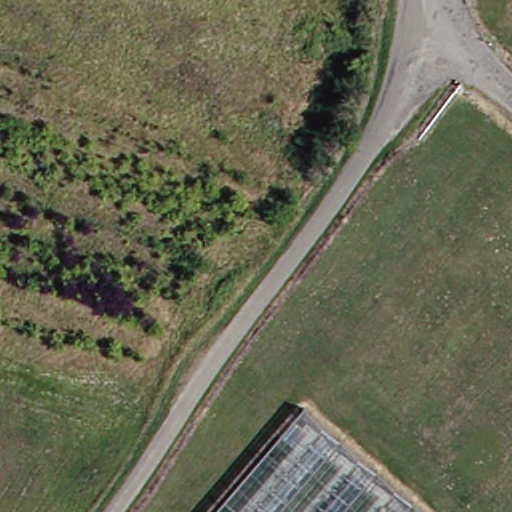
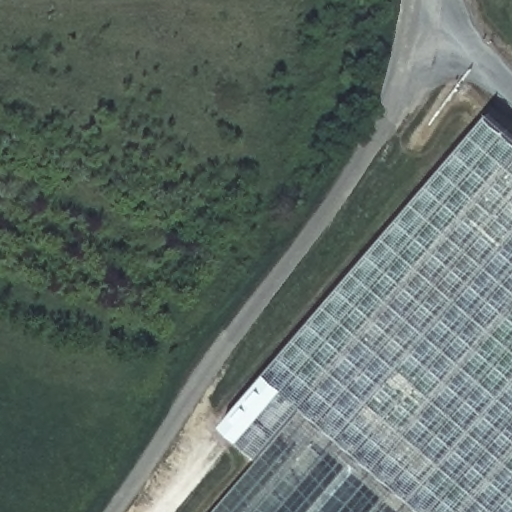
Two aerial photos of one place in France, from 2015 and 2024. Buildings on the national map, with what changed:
new [(512,129),(512,512),(436,512),(310,405),(264,458),(224,424),(492,112),(512,129)]
unchanged [(436,512),(218,512),(310,405),(436,512)]

